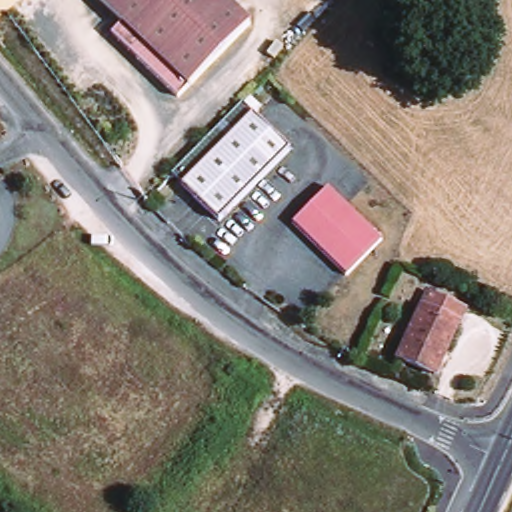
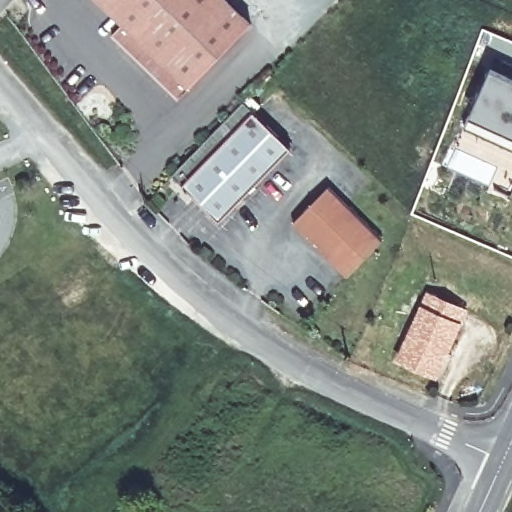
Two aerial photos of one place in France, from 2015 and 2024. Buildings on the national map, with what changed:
unchanged [(97,0),(221,0),(247,25),(175,100),(133,59),(110,35),(121,24),(97,0)]
new [(491,70),(512,79),(512,133),(470,116),(491,70)]
unchanged [(245,110),(293,156),(223,229),(173,182),(245,110)]
unchanged [(379,241),(346,275),(293,225),(327,190),(379,241)]
unchanged [(427,373),(398,360),(428,294),(466,311),(445,357),(436,377),(427,373)]

